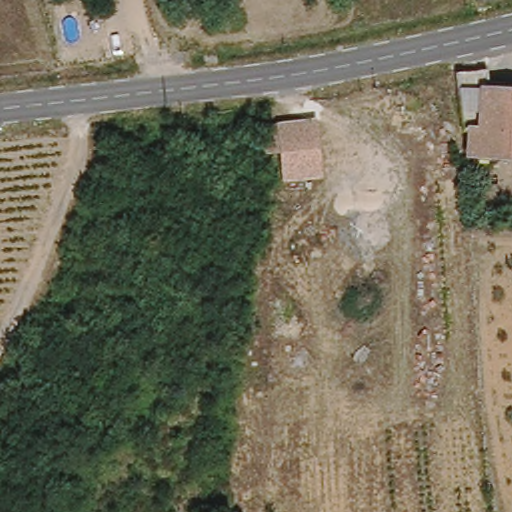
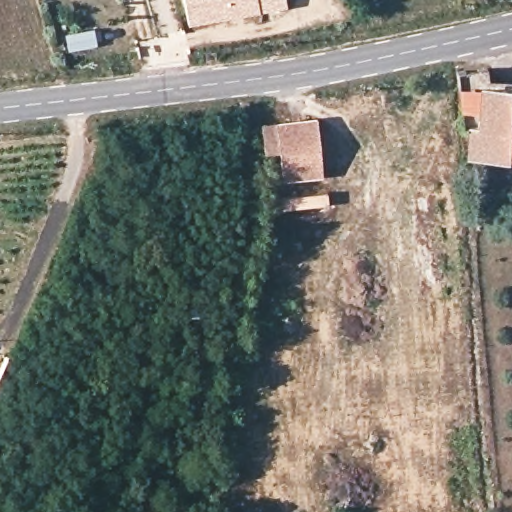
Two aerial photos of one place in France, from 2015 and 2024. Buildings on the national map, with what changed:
new [(188,24),(184,0),(287,0),(288,8),(188,24)]
unchanged [(455,160),(457,120),(472,120),(477,81),(512,83),(512,164),(455,160)]
unchanged [(315,111),(320,172),(280,172),(277,153),(260,153),(250,121),(315,111)]

